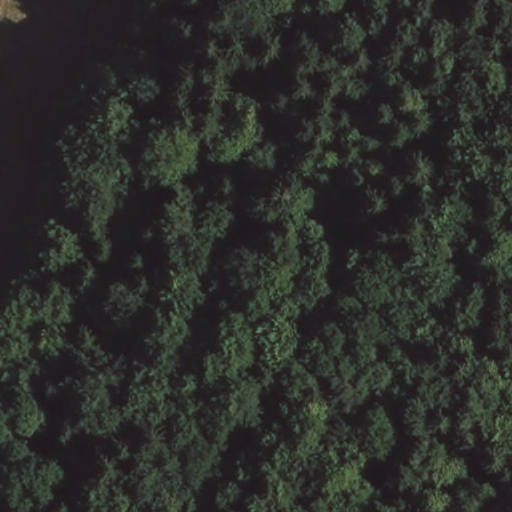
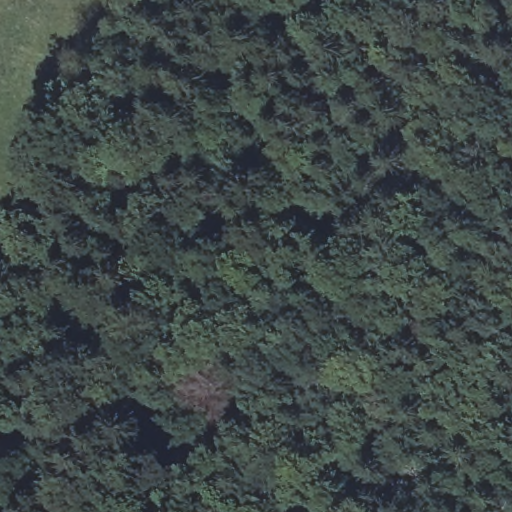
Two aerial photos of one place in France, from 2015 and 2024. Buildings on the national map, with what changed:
[]

